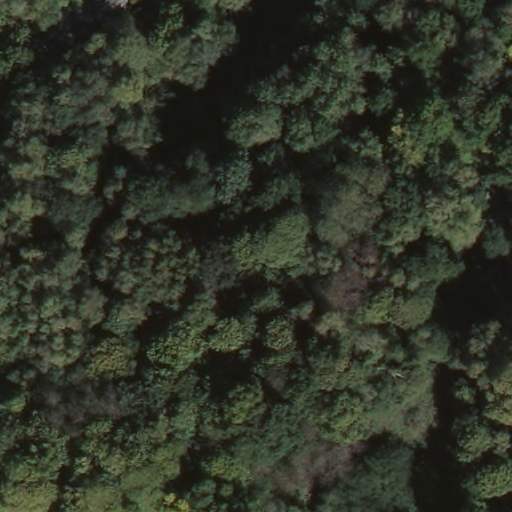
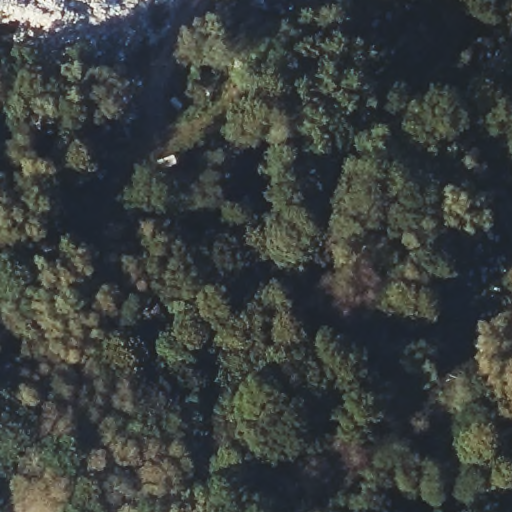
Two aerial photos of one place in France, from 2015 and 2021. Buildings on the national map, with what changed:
[]

